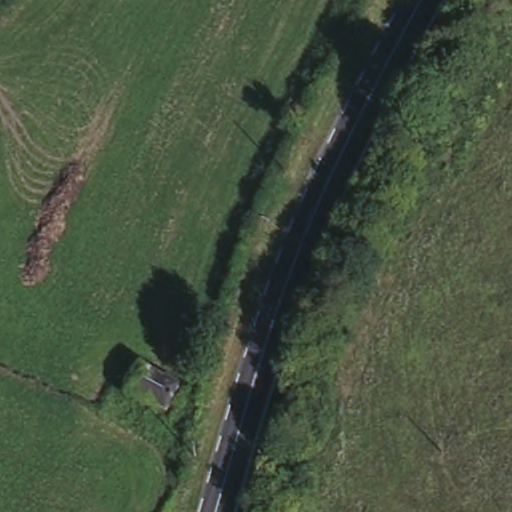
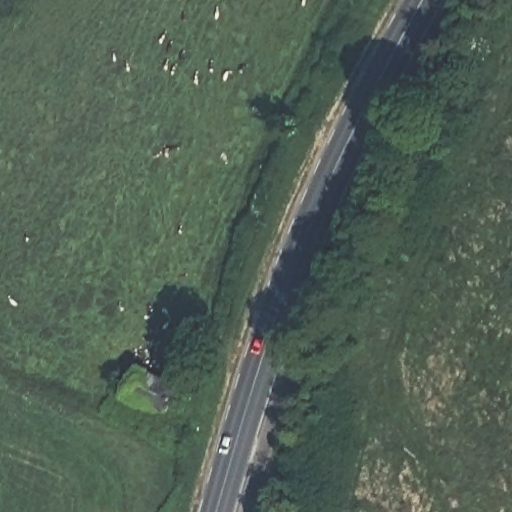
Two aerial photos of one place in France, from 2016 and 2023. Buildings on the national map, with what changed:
unchanged [(141,364),(178,383),(178,384),(187,389),(182,399),(173,394),(166,408),(129,388),(141,364)]

